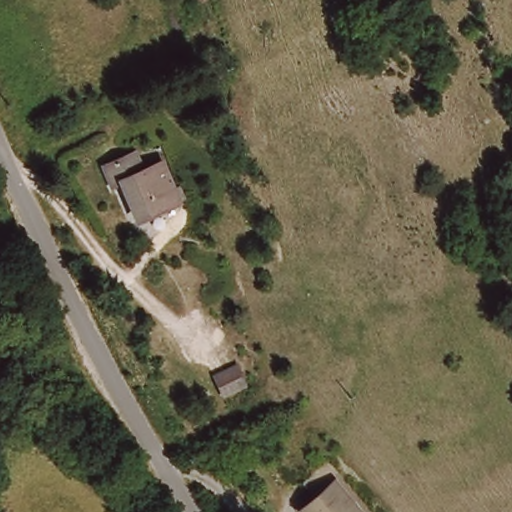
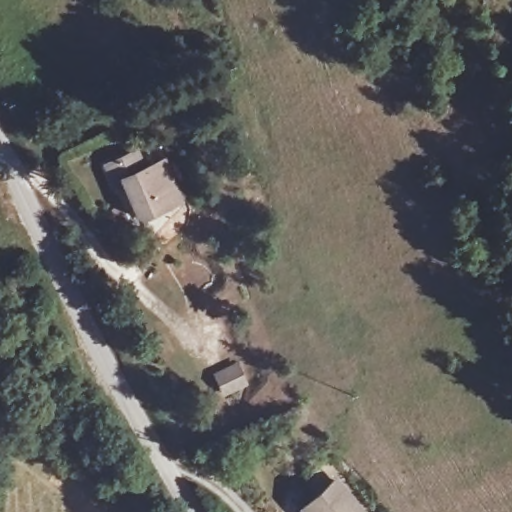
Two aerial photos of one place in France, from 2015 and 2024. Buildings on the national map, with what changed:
unchanged [(141,172),(168,164),(184,206),(139,221),(126,181),(114,185),(108,167),(136,157),(141,172)]
unchanged [(244,363),(255,385),(229,396),(219,374),(244,363)]
unchanged [(331,468),(360,512),(312,512),(311,510),(329,498),(316,478),(331,468)]

